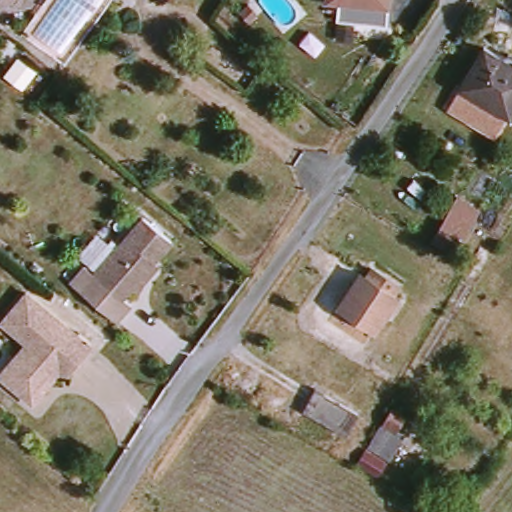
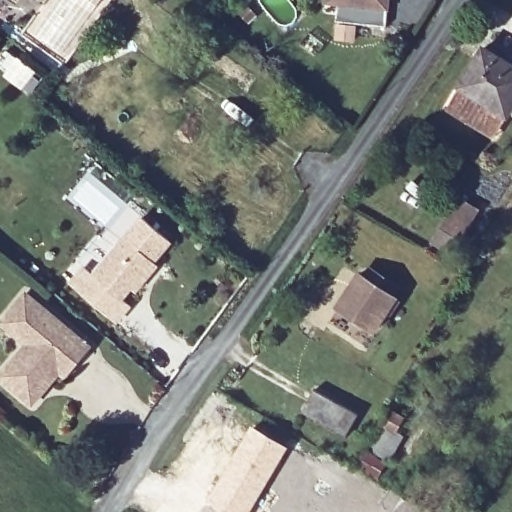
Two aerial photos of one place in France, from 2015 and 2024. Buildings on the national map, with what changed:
unchanged [(395,0),(392,25),(341,19),(343,2),(332,1),(332,0),(395,0)]
unchanged [(467,82),(489,45),(512,58),(512,109),(467,82)]
unchanged [(472,229),(462,246),(436,227),(445,212),(472,229)]
unchanged [(130,289),(120,301),(127,307),(115,323),(69,284),(82,268),(91,277),(141,219),(169,242),(152,262),(156,266),(146,277),(133,292),(130,289)]
unchanged [(389,316),(377,335),(341,312),(352,292),(362,278),(365,281),(368,282),(373,274),(400,290),(395,298),(402,303),(392,317),(389,316)]
unchanged [(13,362),(30,346),(5,323),(28,297),(93,352),(70,381),(62,375),(36,406),(13,390),(1,378),(13,362)]
unchanged [(362,416),(346,441),(303,412),(318,390),(362,416)]
unchanged [(395,460),(373,448),(395,411),(397,412),(410,420),(402,433),(408,437),(395,460)]
new [(252,425),(288,446),(249,512),(223,512),(206,502),(252,425)]

